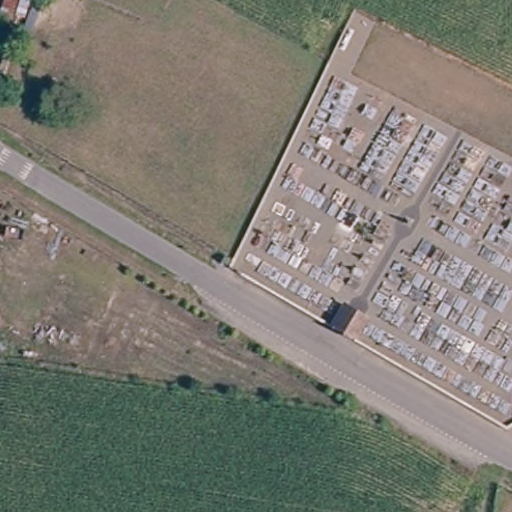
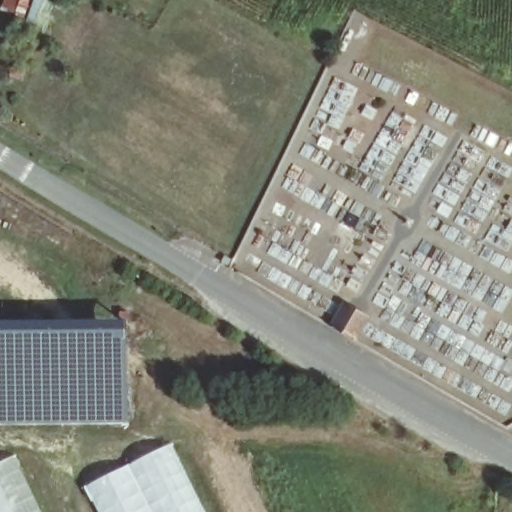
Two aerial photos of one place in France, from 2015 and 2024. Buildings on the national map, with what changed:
unchanged [(344,306),(367,319),(354,341),(352,340),(332,328),(344,306)]
new [(64,326),(64,320),(127,319),(129,426),(0,427),(0,328),(64,326)]
new [(206,512),(96,512),(82,486),(171,442),(206,512)]
new [(14,456),(42,512),(0,512),(0,463),(14,456)]

